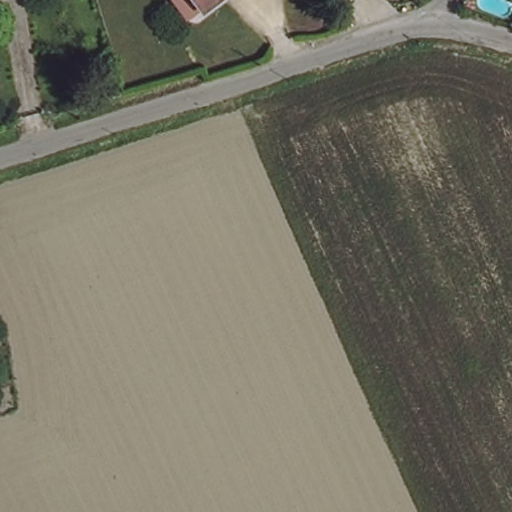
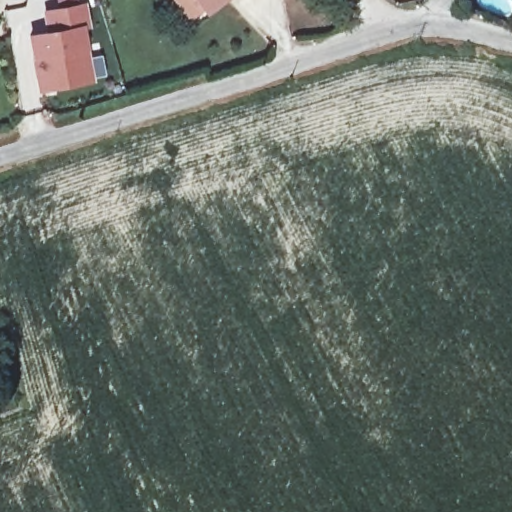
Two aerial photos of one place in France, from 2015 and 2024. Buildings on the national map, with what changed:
new [(199,0),(207,9),(187,20),(172,0),(199,0)]
unchanged [(199,0),(219,0),(207,9),(199,0)]
unchanged [(512,0),(512,10),(502,0),(512,0)]
new [(30,58),(26,35),(45,30),(40,10),(85,1),(89,27),(82,29),(87,44),(89,58),(103,55),(107,73),(92,76),(92,80),(37,92),(30,58)]

